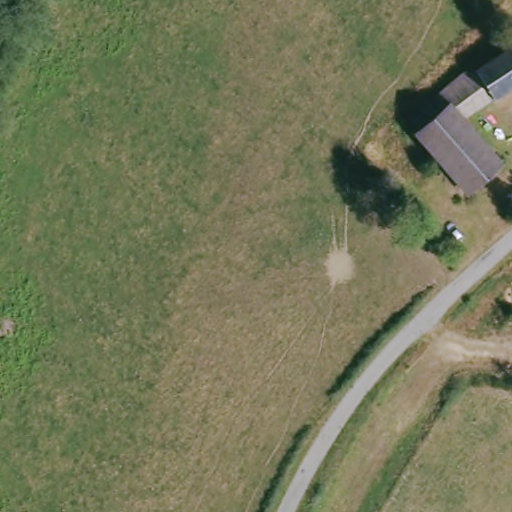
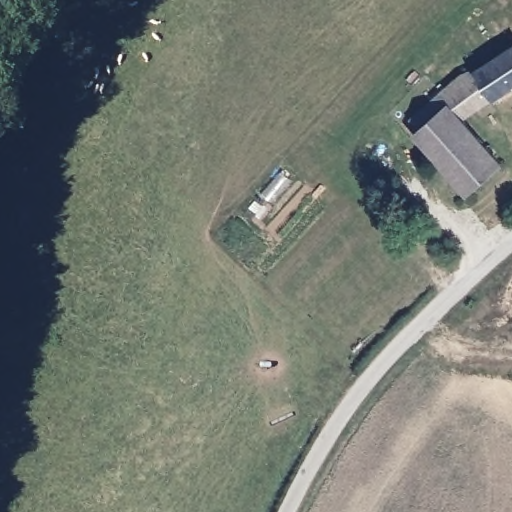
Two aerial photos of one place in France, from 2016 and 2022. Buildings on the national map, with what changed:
unchanged [(508,165),(472,195),(422,131),(427,127),(420,117),(512,45),(512,91),(473,122),(508,165)]

